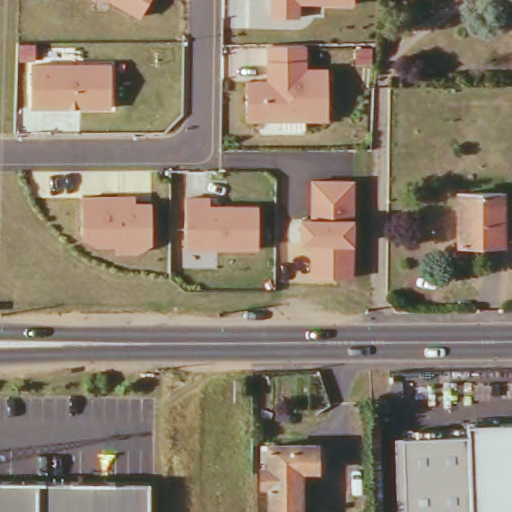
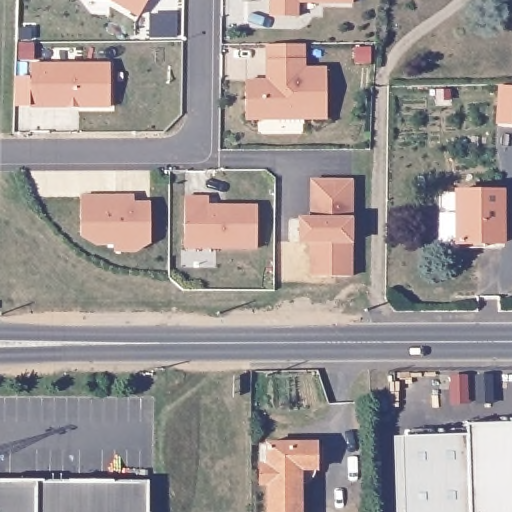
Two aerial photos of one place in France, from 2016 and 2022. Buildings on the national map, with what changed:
unchanged [(140,16),(113,0),(150,0),(140,16)]
unchanged [(272,0),(298,0),(298,17),(272,16),(272,0)]
unchanged [(353,3),(318,2),(318,0),(353,0),(353,3)]
unchanged [(247,119),(247,81),(268,81),(268,45),(287,44),(305,44),(305,68),(327,68),(327,118),(303,118),(281,119),(247,119)]
unchanged [(32,106),(32,64),(111,64),(111,106),(32,106)]
new [(512,87),(512,125),(497,124),(500,86),(512,87)]
unchanged [(352,277),(312,276),(312,242),(300,242),(300,219),(312,219),(312,181),(352,181),(352,277)]
unchanged [(458,194),(501,194),(501,243),(457,243),(458,194)]
unchanged [(135,197),(135,203),(151,203),(152,241),(135,252),(115,251),(115,244),(97,244),(81,235),(82,196),(117,197),(135,197)]
unchanged [(186,196),(209,198),(209,205),(257,206),(257,248),(185,247),(186,196)]
unchanged [(373,402),(386,402),(386,412),(373,412),(373,402)]
unchanged [(512,423),(512,512),(464,512),(461,424),(512,423)]
unchanged [(315,438),(315,463),(299,464),(299,512),(267,512),(267,478),(260,478),(260,462),(267,462),(267,439),(315,438)]
unchanged [(15,481),(15,512),(0,512),(0,481),(15,481)]
unchanged [(153,482),(153,512),(15,512),(15,481),(153,482)]

